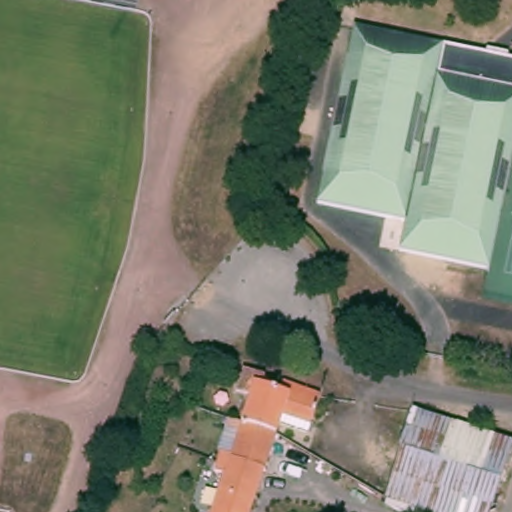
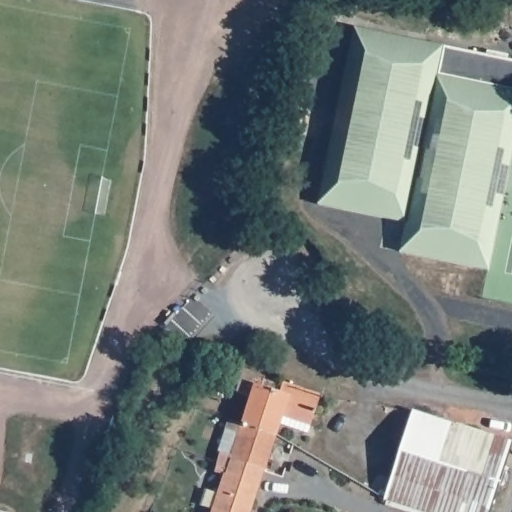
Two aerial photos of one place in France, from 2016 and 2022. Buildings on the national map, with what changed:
unchanged [(437,74),(512,90),(512,153),(488,269),(401,250),(407,223),(317,204),(354,28),(442,45),(437,74)]
unchanged [(324,395),(314,424),(285,419),(278,437),(244,425),(261,375),(324,395)]
unchanged [(435,512),(414,512),(385,504),(380,498),(411,412),(466,428),(435,512)]
unchanged [(252,512),(213,512),(223,474),(214,469),(221,453),(217,450),(229,421),(244,425),(232,459),(265,471),(252,512)]
unchanged [(244,425),(278,437),(265,471),(232,459),(244,425)]
unchanged [(512,452),(489,512),(435,512),(466,428),(512,440),(512,452)]

